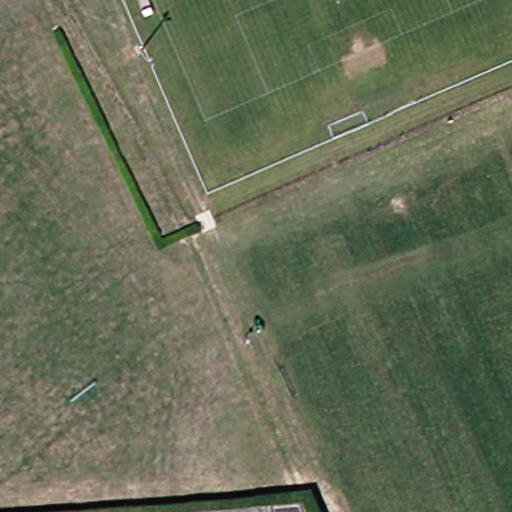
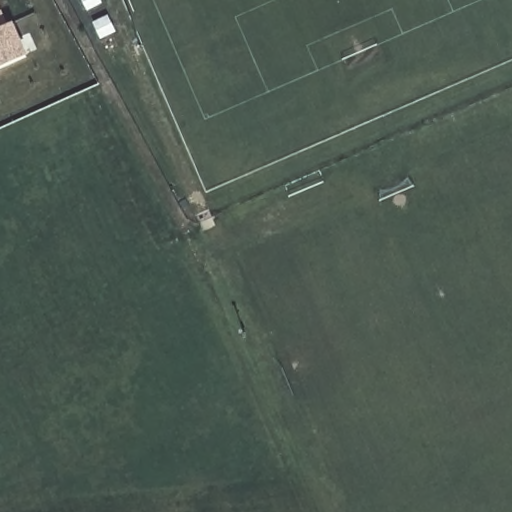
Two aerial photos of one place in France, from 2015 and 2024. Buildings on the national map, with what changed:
new [(7,25),(14,22),(29,56),(0,69),(0,19),(3,17),(7,25)]

